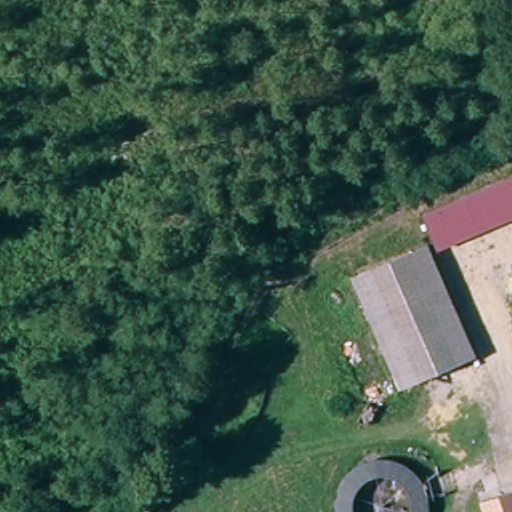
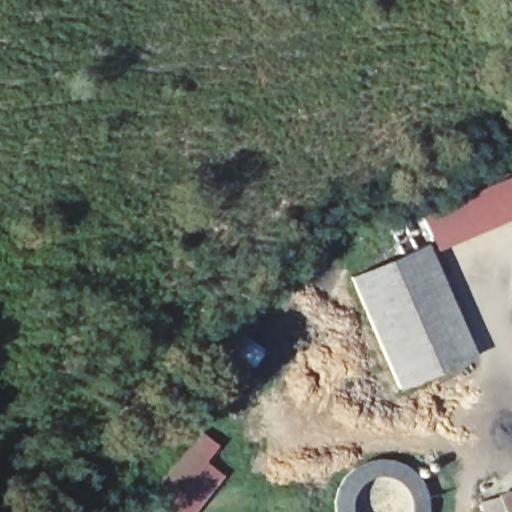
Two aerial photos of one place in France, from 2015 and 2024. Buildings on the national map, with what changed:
unchanged [(421,214),(512,175),(512,218),(435,251),(421,214)]
unchanged [(430,245),(475,357),(400,387),(355,275),(430,245)]
new [(198,430),(220,446),(208,461),(225,476),(197,512),(138,512),(135,509),(198,430)]
unchanged [(417,474),(422,483),(427,501),(426,512),(410,512),(410,500),(405,488),(396,480),(384,477),(373,478),(362,484),(355,496),(352,512),(333,512),(332,504),(337,484),(346,470),(360,462),(380,459),(396,460),(408,468),(417,474)]
unchanged [(503,497),(512,495),(512,512),(507,512),(503,497)]
unchanged [(135,512),(125,512),(130,507),(135,512)]

